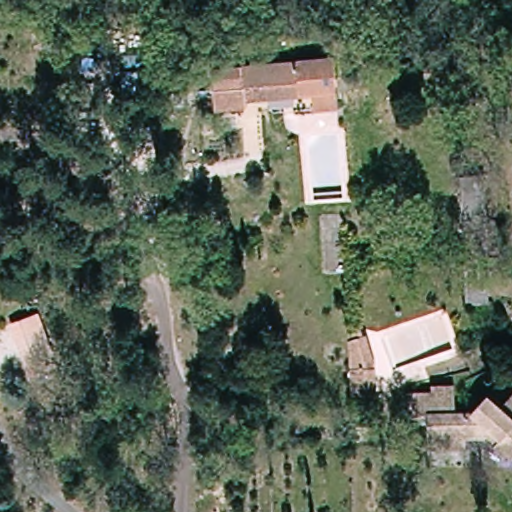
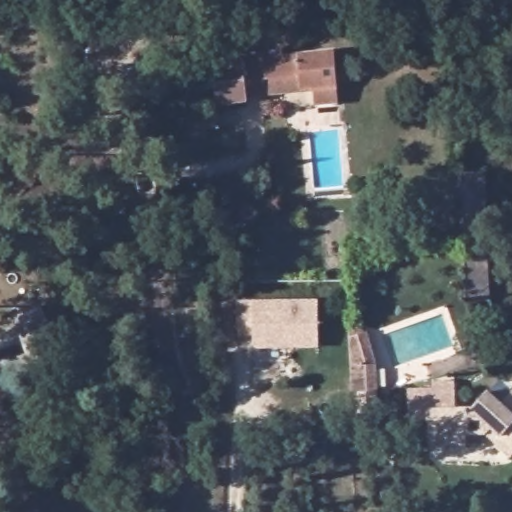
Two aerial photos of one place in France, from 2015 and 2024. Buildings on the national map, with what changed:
unchanged [(113,39),(138,38),(140,55),(141,65),(115,67),(114,56),(113,39)]
unchanged [(215,60),(339,50),(341,70),(217,77),(215,60)]
unchanged [(341,70),(342,70),(344,104),(320,105),(318,88),(250,91),(251,99),(220,101),(217,77),(341,70)]
new [(253,302),(319,302),(320,349),(255,352),(255,337),(238,338),(236,302),(253,302)]
unchanged [(56,347),(28,356),(14,313),(42,304),(56,347)]
unchanged [(365,324),(367,333),(370,332),(380,365),(382,394),(358,394),(355,364),(353,334),(353,327),(365,324)]
unchanged [(460,409),(477,409),(494,386),(506,396),(512,388),(512,444),(497,430),(470,430),(470,445),(435,445),(435,441),(435,424),(418,416),(418,400),(410,400),(410,394),(410,383),(430,383),(434,383),(434,381),(433,374),(445,375),(457,375),(459,394),(460,409)]

